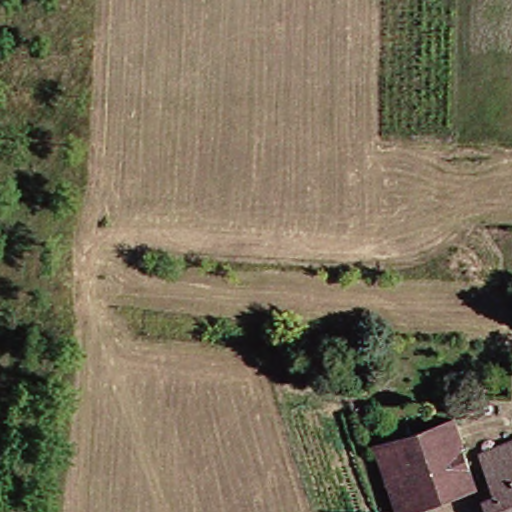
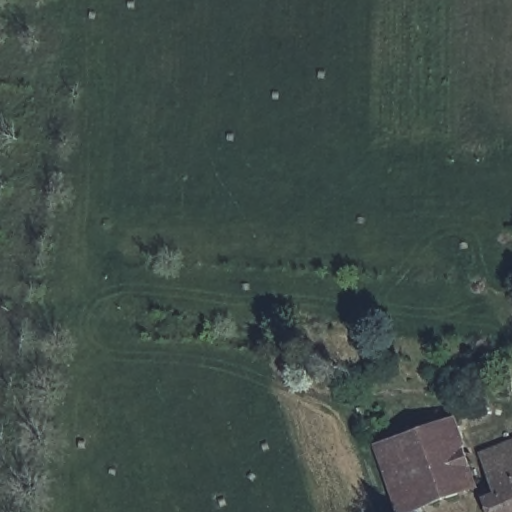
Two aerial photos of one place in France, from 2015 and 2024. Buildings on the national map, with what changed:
unchanged [(378,433),(452,410),(459,430),(385,454),(378,433)]
unchanged [(425,512),(407,512),(385,454),(459,430),(481,497),(425,512)]
unchanged [(486,498),(493,495),(490,485),(498,481),(485,445),(507,437),(512,435),(512,512),(491,512),(486,498)]

